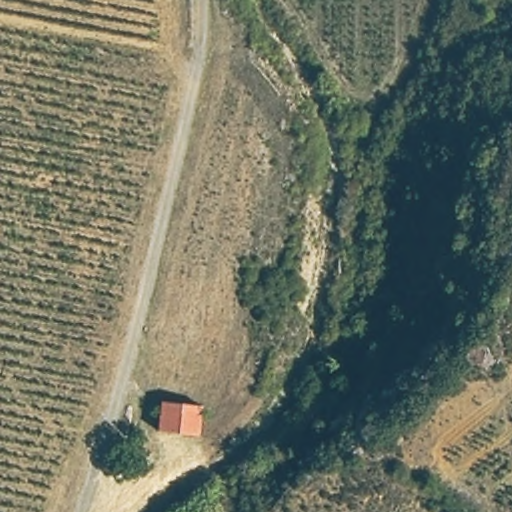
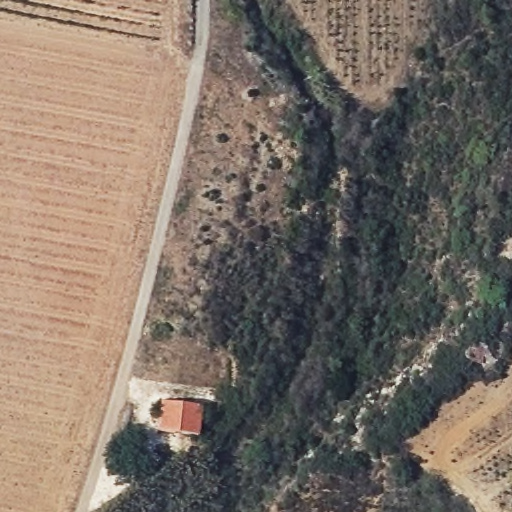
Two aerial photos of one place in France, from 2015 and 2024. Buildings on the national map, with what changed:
unchanged [(155,397),(198,400),(195,429),(152,427),(155,397)]

